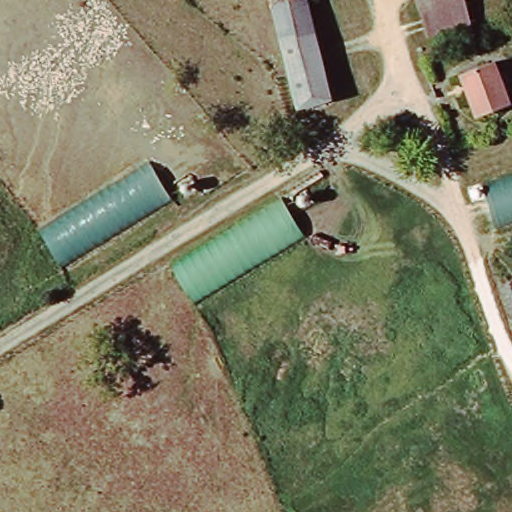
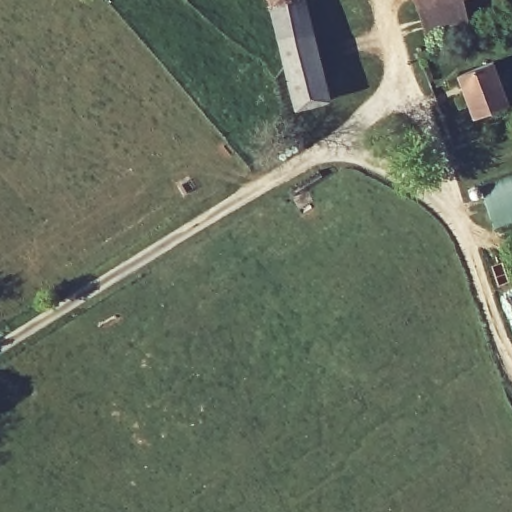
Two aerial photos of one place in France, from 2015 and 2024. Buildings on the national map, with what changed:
unchanged [(302,105),(275,0),(312,0),(337,97),(302,105)]
unchanged [(424,27),(418,0),(462,0),(466,17),(424,27)]
unchanged [(477,112),(462,69),(496,57),(511,99),(477,112)]
demolished [(152,161),(175,200),(63,268),(42,230),(152,161)]
unchanged [(512,186),(512,230),(493,236),(481,195),(512,186)]
demolished [(285,196),(308,237),(194,303),(175,265),(285,196)]

